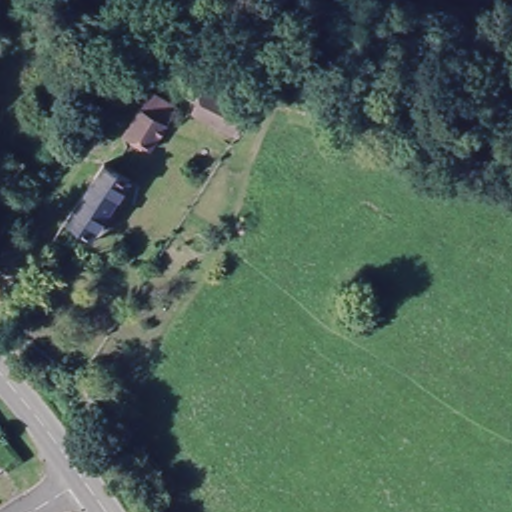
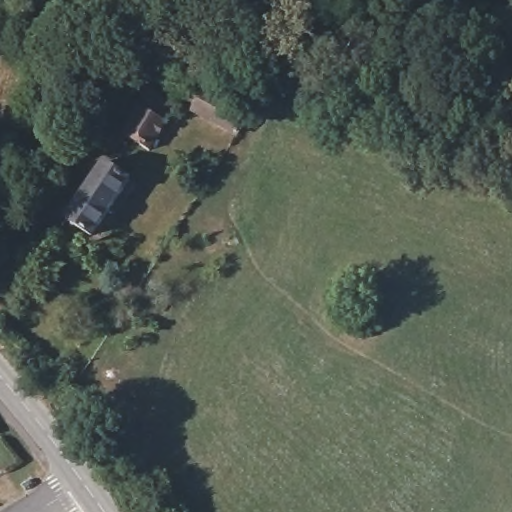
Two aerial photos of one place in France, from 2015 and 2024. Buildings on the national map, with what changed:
unchanged [(151,90),(175,105),(150,146),(126,132),(151,90)]
unchanged [(197,109),(207,91),(251,113),(239,130),(197,109)]
unchanged [(107,167),(132,182),(98,232),(96,235),(72,221),(107,167)]

